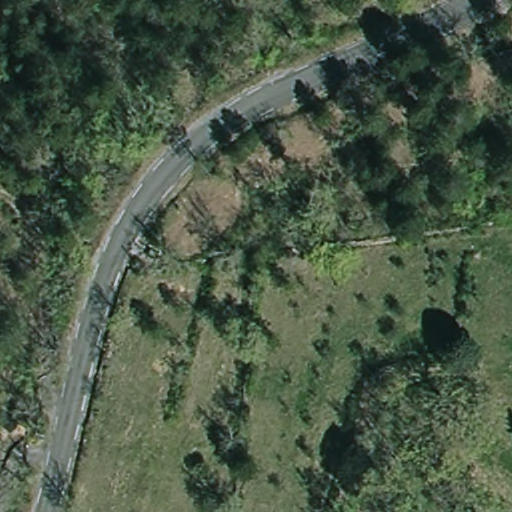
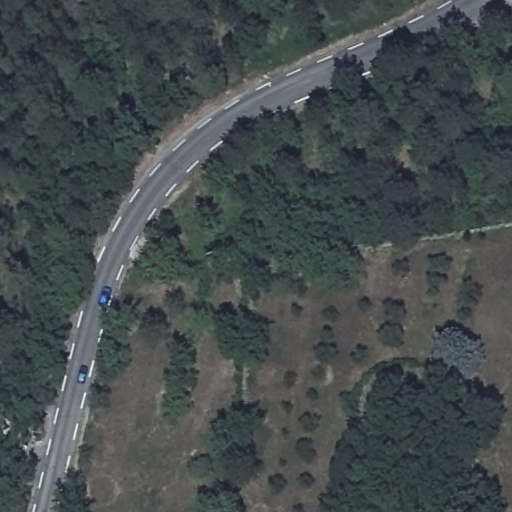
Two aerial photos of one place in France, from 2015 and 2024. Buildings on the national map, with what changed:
[]

